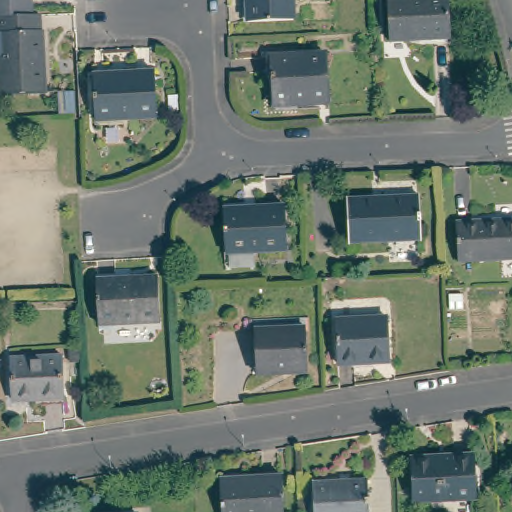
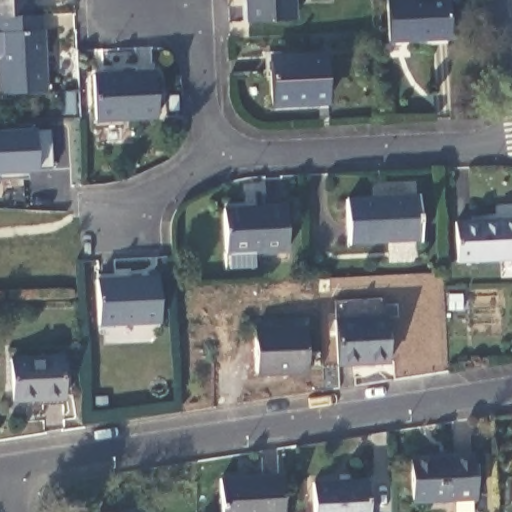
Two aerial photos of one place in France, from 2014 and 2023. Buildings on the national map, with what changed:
unchanged [(0,0),(32,0),(32,15),(0,16),(0,0)]
unchanged [(247,0),(292,0),(293,21),(248,23),(247,0)]
unchanged [(387,0),(448,0),(450,39),(388,42),(387,0)]
unchanged [(41,15),(41,31),(43,31),(46,92),(1,94),(0,72),(0,16),(32,15),(41,15)]
unchanged [(328,100),(295,102),(295,105),(272,106),(271,57),(327,54),(328,100)]
unchanged [(155,72),(157,117),(96,120),(94,75),(155,72)]
new [(0,181),(0,132),(51,130),(52,170),(28,171),(29,179),(24,180),(0,181)]
unchanged [(421,239),(348,242),(347,200),(419,196),(421,239)]
unchanged [(253,253),(254,268),(229,269),(228,254),(225,254),(222,209),(285,206),(287,251),(253,253)]
unchanged [(512,220),(512,260),(457,262),(456,222),(512,220)]
unchanged [(160,322),(98,325),(96,280),(157,277),(160,322)]
unchanged [(335,320),(386,318),(388,362),(337,364),(335,320)]
unchanged [(256,380),(254,335),(305,333),(307,377),(256,380)]
unchanged [(13,402),(11,358),(62,356),(64,399),(13,402)]
unchanged [(472,455),(475,497),(412,501),(411,458),(472,455)]
unchanged [(512,465),(512,505),(510,465),(512,465)]
unchanged [(369,512),(313,512),(312,483),(367,480),(369,512)]
unchanged [(217,512),(215,484),(277,481),(278,512),(217,512)]

